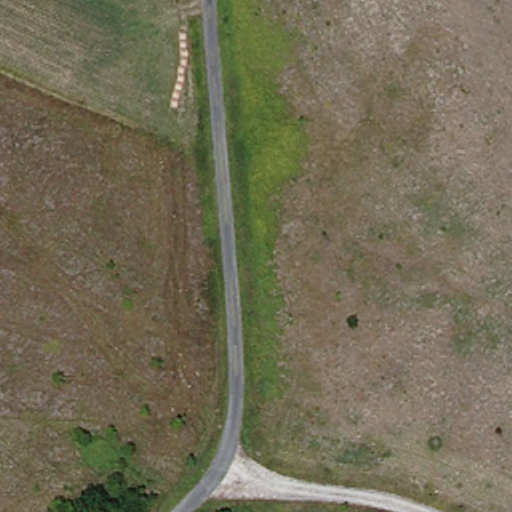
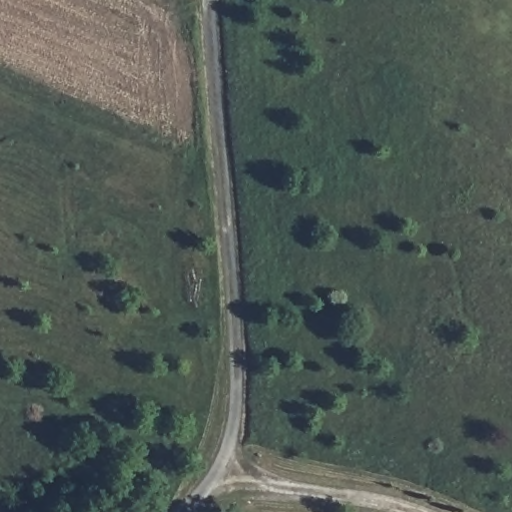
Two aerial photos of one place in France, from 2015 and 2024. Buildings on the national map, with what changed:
[]

